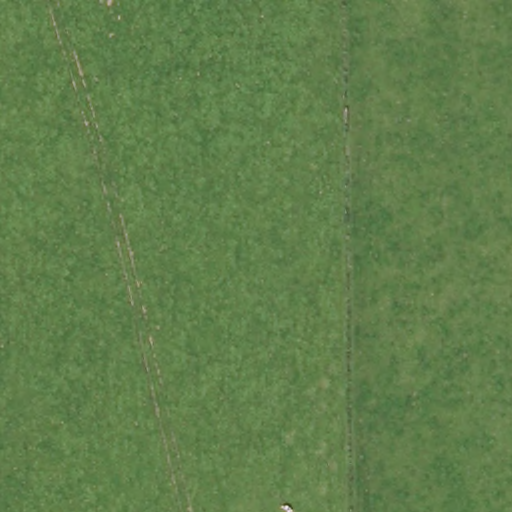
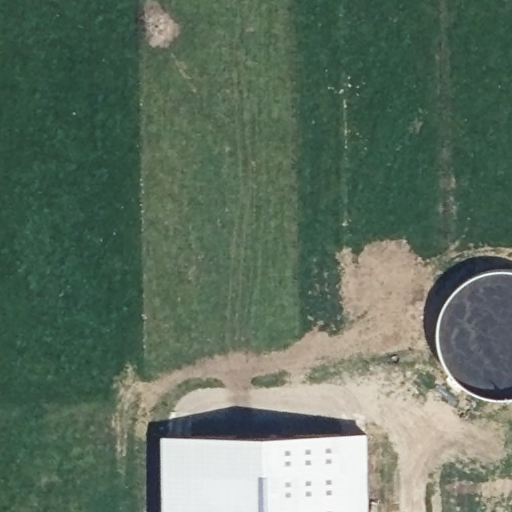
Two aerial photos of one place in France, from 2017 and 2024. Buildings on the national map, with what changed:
new [(369,431),(370,512),(164,512),(163,433),(369,431)]

